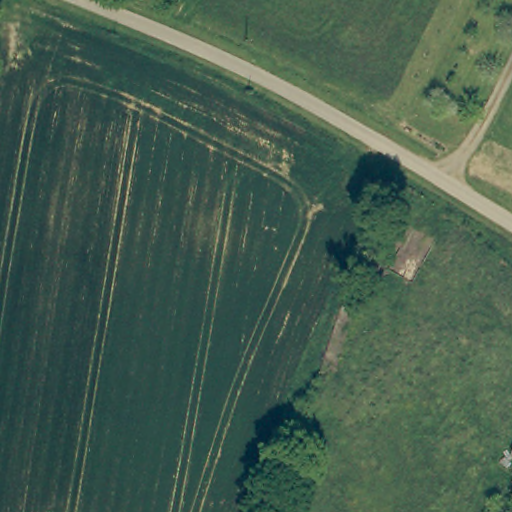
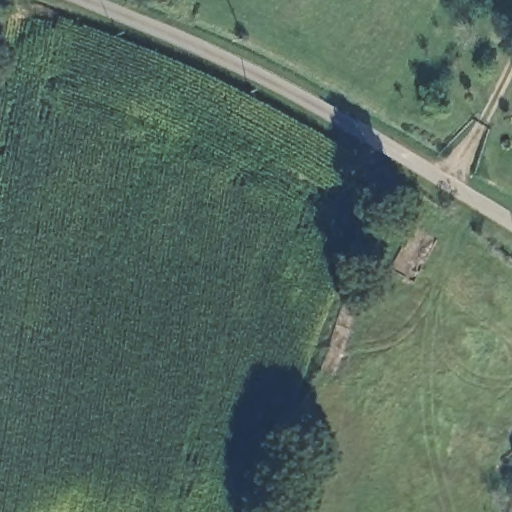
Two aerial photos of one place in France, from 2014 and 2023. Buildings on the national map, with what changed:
unchanged [(350,297),(371,251),(390,260),(369,306),(350,297)]
unchanged [(510,454),(512,449),(512,455),(510,454)]

